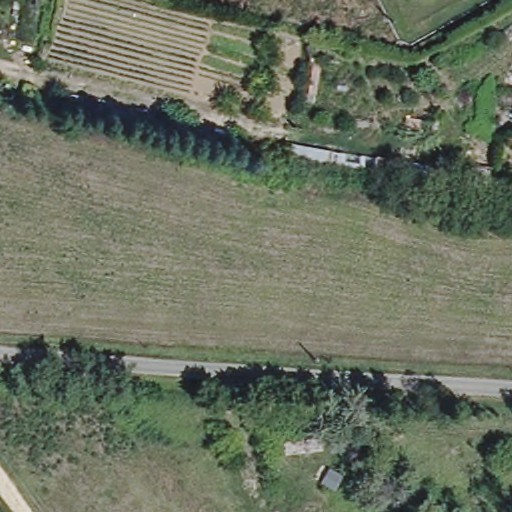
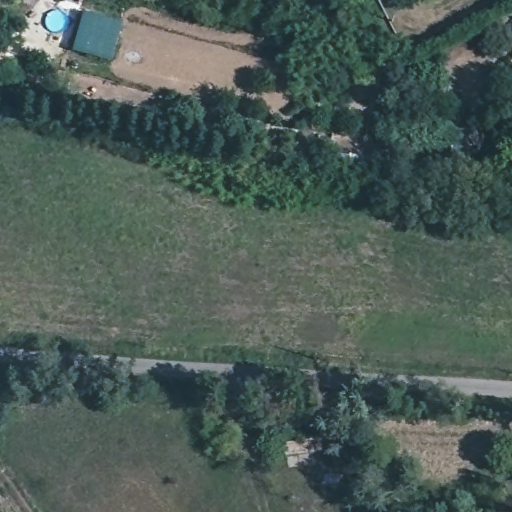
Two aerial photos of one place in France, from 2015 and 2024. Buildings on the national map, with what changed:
new [(82,10),(121,21),(110,61),(71,50),(82,10)]
unchanged [(324,459),(284,464),(281,444),(324,442),(324,459)]

